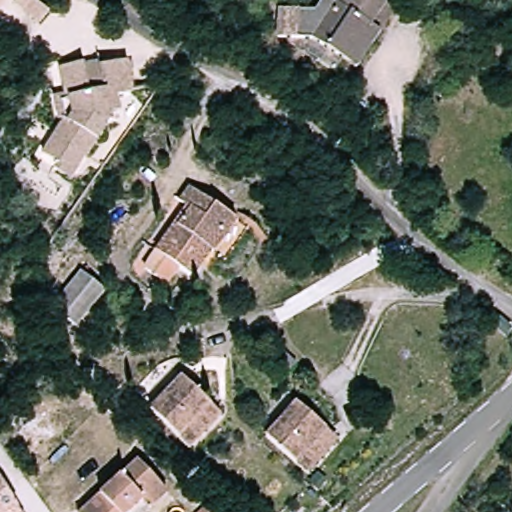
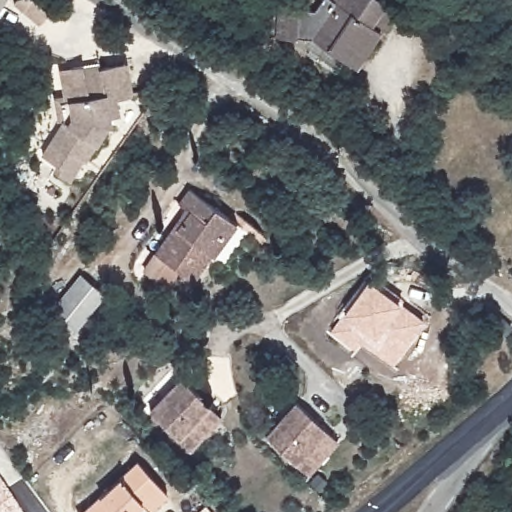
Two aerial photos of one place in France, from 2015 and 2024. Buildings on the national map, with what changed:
unchanged [(272,19),(312,12),(320,0),(385,0),(398,8),(359,66),(316,39),(289,45),(279,46),(272,19)]
unchanged [(68,128),(65,126),(61,109),(71,106),(65,76),(88,71),(91,89),(107,86),(105,75),(131,70),(136,101),(120,105),(123,121),(114,122),(115,131),(111,131),(89,166),(76,158),(66,174),(47,161),(68,128)]
unchanged [(179,266),(170,280),(149,263),(184,212),(178,205),(188,192),(229,219),(236,224),(226,238),(197,277),(179,266)]
new [(361,340),(355,349),(330,331),(343,313),(369,279),(371,275),(404,299),(402,302),(428,322),(393,363),(361,340)]
unchanged [(75,329),(64,319),(62,304),(85,276),(104,294),(75,329)]
unchanged [(180,445),(150,415),(186,382),(214,413),(180,445)]
unchanged [(298,468),(270,439),(309,404),(335,436),(298,468)]
unchanged [(150,512),(78,512),(135,463),(160,493),(165,499),(150,512)]
unchanged [(20,512),(0,512),(0,488),(20,512)]

